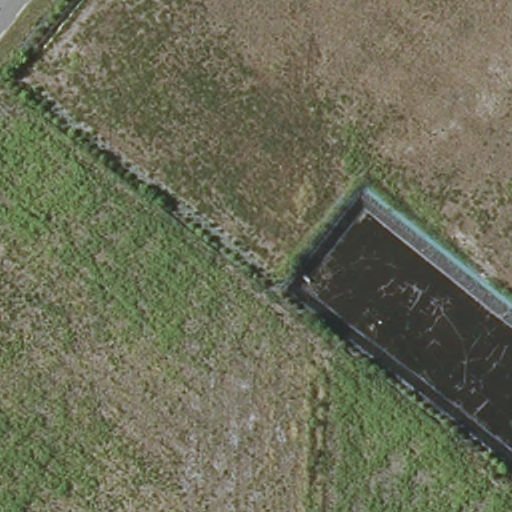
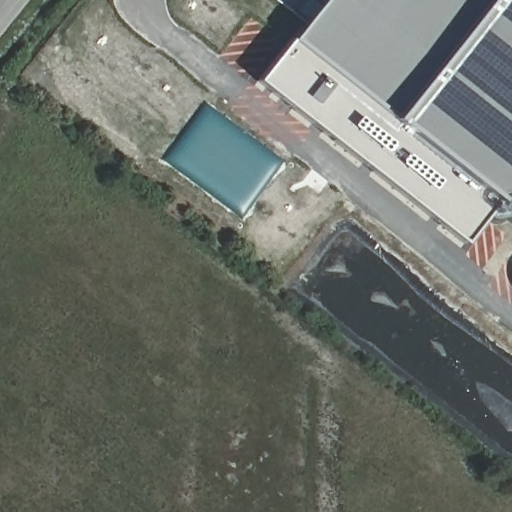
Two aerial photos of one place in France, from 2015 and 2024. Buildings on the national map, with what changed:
new [(463,244),(256,81),(290,40),(322,0),(512,0),(512,217),(494,203),(463,244)]

